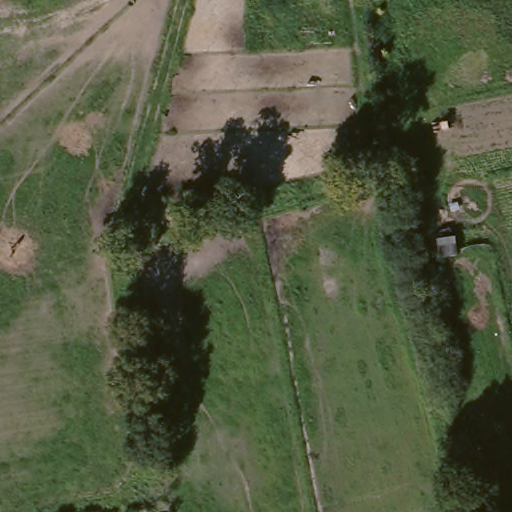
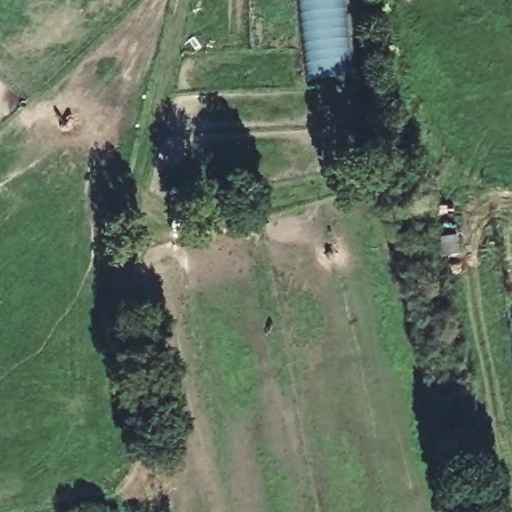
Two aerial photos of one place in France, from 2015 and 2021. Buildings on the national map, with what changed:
new [(307,83),(298,0),(343,0),(351,78),(307,83)]

